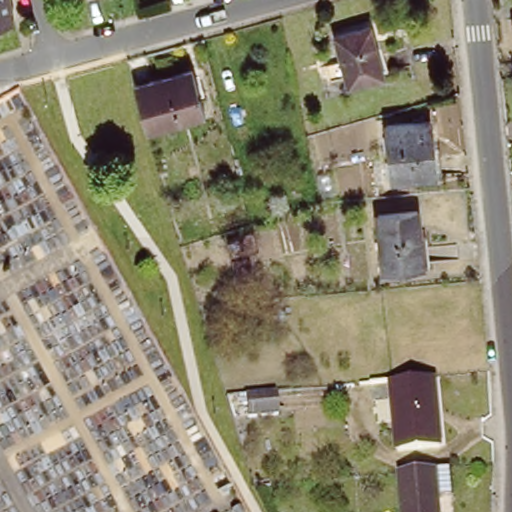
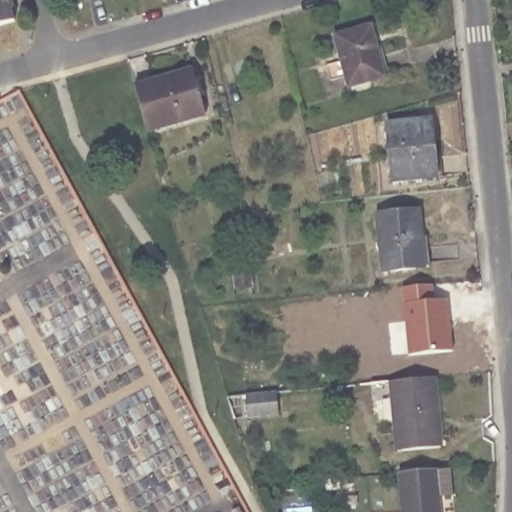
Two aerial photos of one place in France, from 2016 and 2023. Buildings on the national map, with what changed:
unchanged [(17,7),(21,20),(2,26),(0,26),(0,0),(15,0),(17,7)]
unchanged [(385,75),(349,84),(347,73),(335,76),(331,62),(343,59),(336,32),(371,22),(385,75)]
unchanged [(142,102),(140,95),(138,91),(137,86),(195,69),(208,114),(150,131),(142,102)]
unchanged [(385,122),(427,118),(432,174),(389,177),(385,122)]
unchanged [(420,266),(385,268),(380,212),(419,208),(422,234),(417,235),(420,266)]
unchanged [(252,266),(254,287),(243,288),(238,288),(237,267),(252,266)]
new [(447,299),(452,351),(410,355),(403,288),(432,286),(434,301),(447,299)]
unchanged [(438,373),(445,442),(403,446),(397,377),(438,373)]
unchanged [(277,392),(280,414),(278,414),(247,416),(245,394),(272,392),(277,392)]
unchanged [(438,466),(453,465),(455,492),(440,493),(442,512),(406,512),(402,469),(438,466)]

